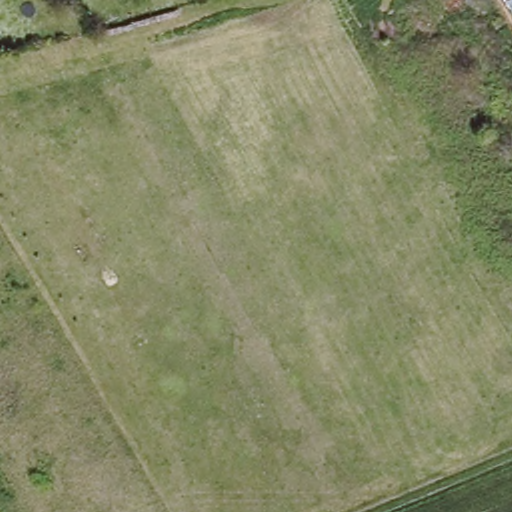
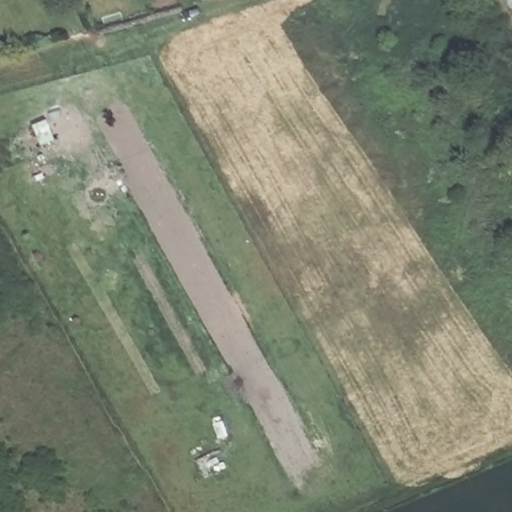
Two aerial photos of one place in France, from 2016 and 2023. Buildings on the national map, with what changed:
unchanged [(512,0),(512,12),(505,0),(512,0)]

